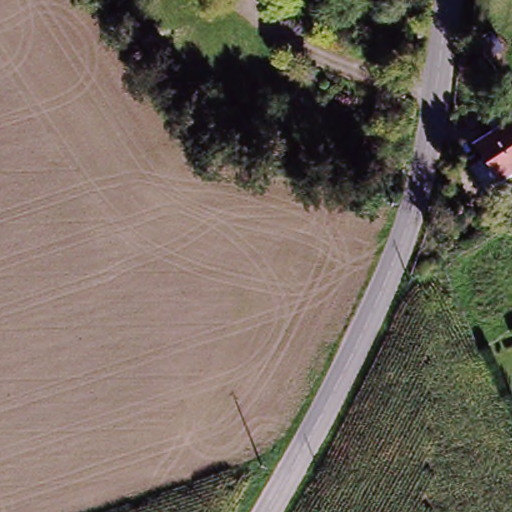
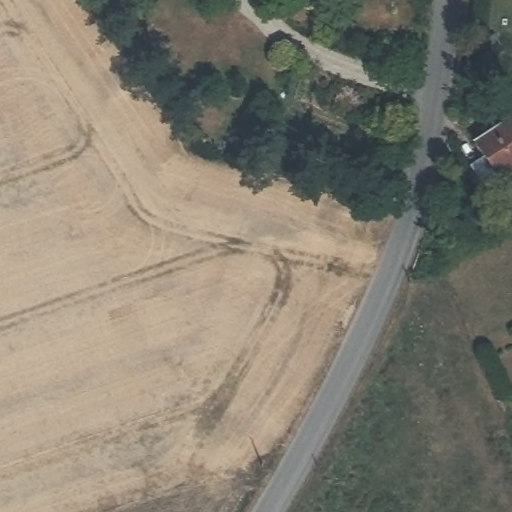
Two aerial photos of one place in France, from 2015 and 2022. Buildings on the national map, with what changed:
unchanged [(510,117),(512,120),(512,173),(484,194),(467,171),(481,158),(471,144),(510,117)]

